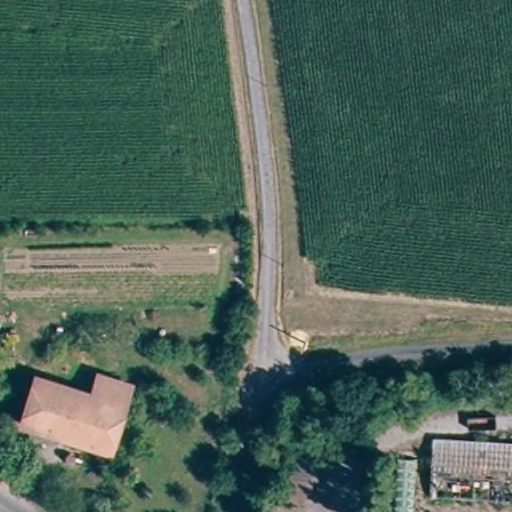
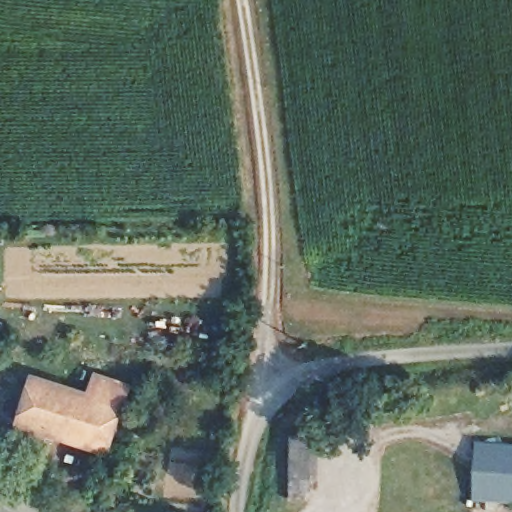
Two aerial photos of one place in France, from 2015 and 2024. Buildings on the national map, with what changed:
unchanged [(107,452),(19,430),(30,386),(92,401),(96,384),(122,390),(107,452)]
new [(512,441),(512,499),(475,496),(478,439),(512,441)]
unchanged [(320,502),(300,503),(299,465),(319,465),(320,502)]

